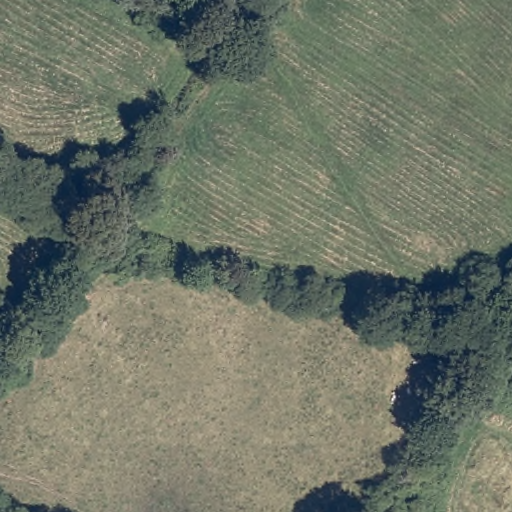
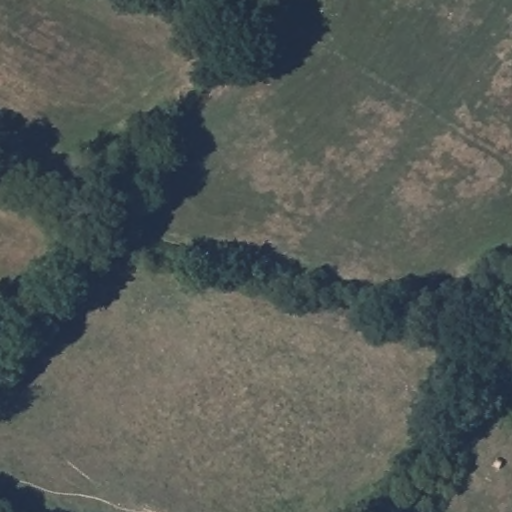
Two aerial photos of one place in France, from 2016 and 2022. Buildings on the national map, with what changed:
[]

